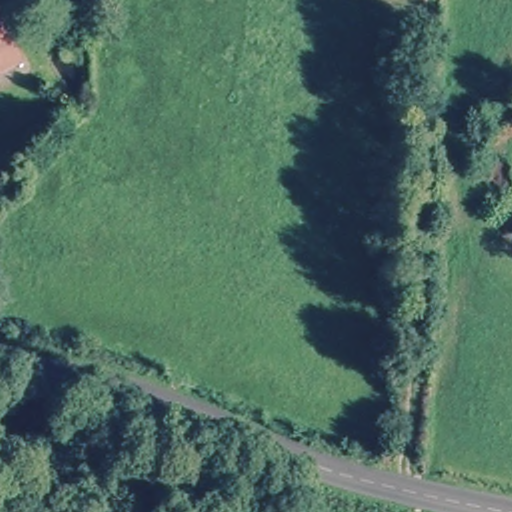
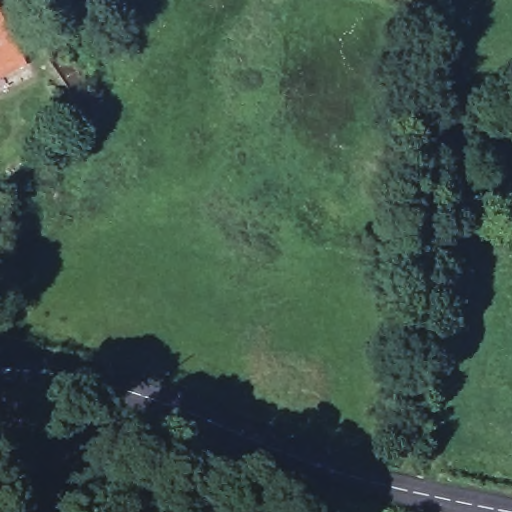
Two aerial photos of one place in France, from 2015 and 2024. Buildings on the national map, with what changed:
unchanged [(0,75),(0,7),(30,60),(0,75)]

